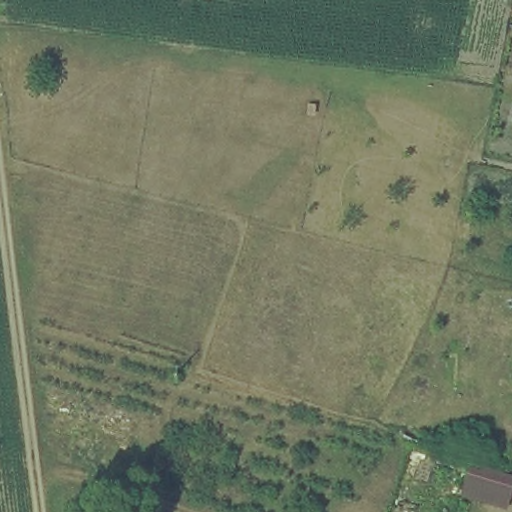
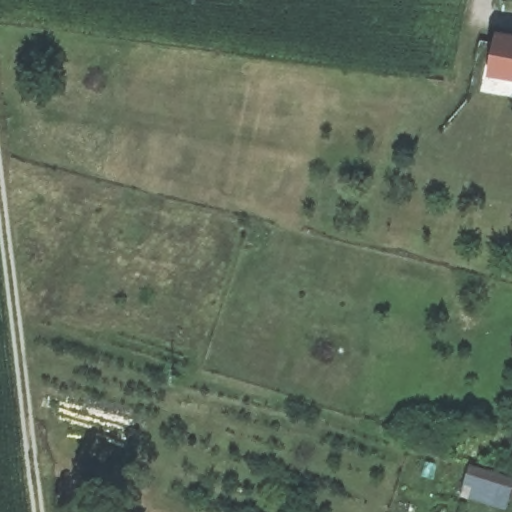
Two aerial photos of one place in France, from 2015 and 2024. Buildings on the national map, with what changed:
new [(495,34),(512,37),(512,80),(495,76),(487,75),(489,63),(495,34)]
unchanged [(465,502),(468,464),(512,477),(512,512),(499,512),(465,502)]

